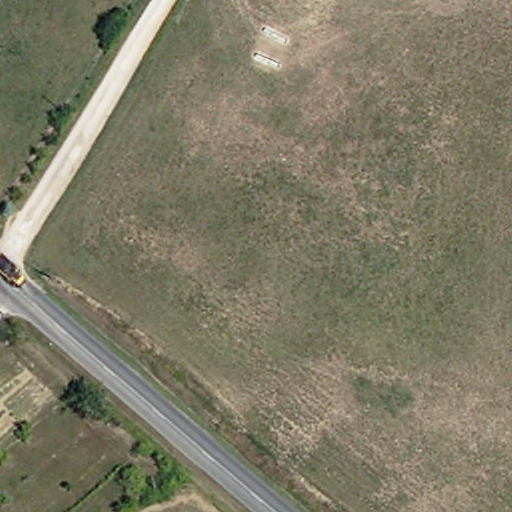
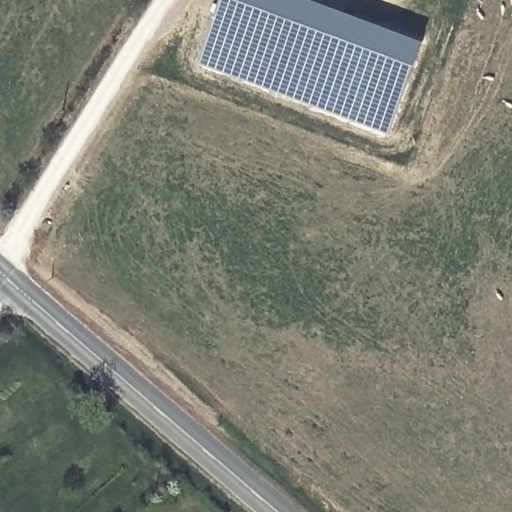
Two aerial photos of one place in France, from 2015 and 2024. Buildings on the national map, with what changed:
new [(222,0),(312,0),(430,47),(388,149),(194,71),(222,0)]

